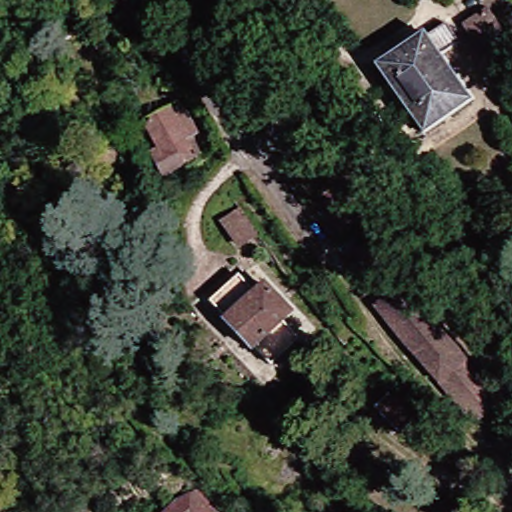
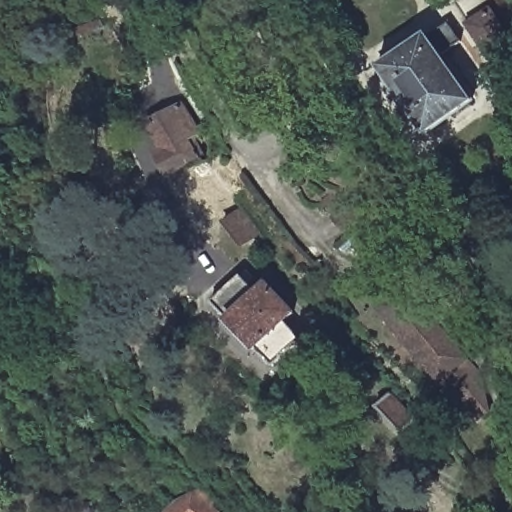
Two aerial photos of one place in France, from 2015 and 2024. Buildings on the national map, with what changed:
unchanged [(493,66),(464,25),(488,8),(512,43),(512,53),(493,66)]
unchanged [(89,24),(93,35),(59,46),(56,34),(89,24)]
unchanged [(476,100),(429,133),(383,68),(429,35),(431,38),(451,24),(463,42),(443,55),(476,100)]
unchanged [(143,115),(177,95),(194,122),(189,125),(189,128),(192,135),(194,142),(199,147),(164,169),(151,149),(160,143),(143,115)]
unchanged [(239,240),(182,164),(201,152),(257,227),(239,240)]
unchanged [(320,200),(330,194),(343,209),(352,202),(364,215),(345,231),(320,200)]
unchanged [(255,345),(254,347),(228,320),(229,318),(212,299),(240,272),(243,274),(248,268),(254,275),(249,280),(259,290),(267,282),(293,309),(284,317),(302,335),(288,347),(290,349),(286,354),(284,352),(273,363),(255,345)]
unchanged [(477,425),(464,411),(377,308),(406,283),(504,400),(477,425)]
unchanged [(376,407),(390,394),(416,421),(402,435),(376,407)]
unchanged [(198,492),(219,512),(172,512),(180,504),(198,492)]

